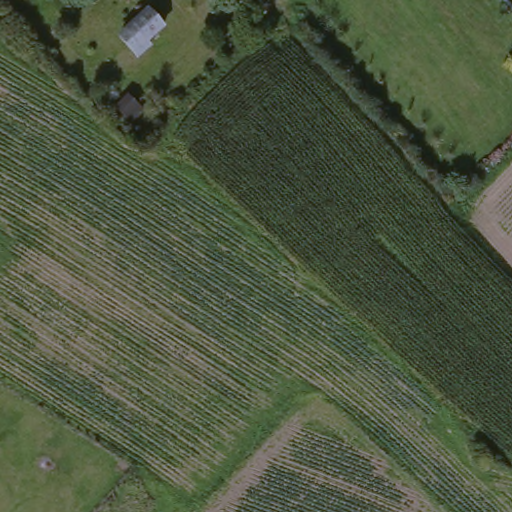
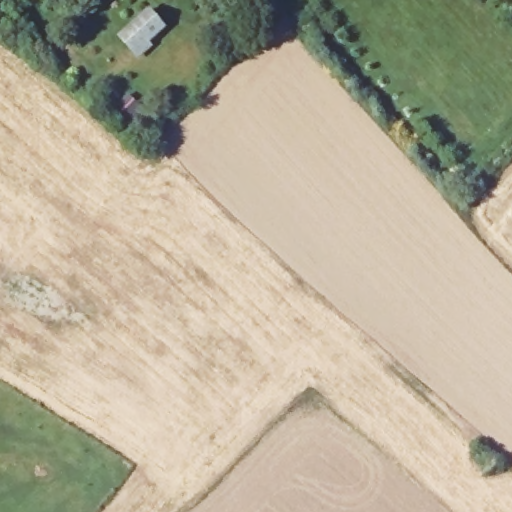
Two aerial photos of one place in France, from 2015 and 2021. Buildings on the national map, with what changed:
unchanged [(119,36),(149,9),(163,25),(146,40),(150,44),(138,55),(119,36)]

